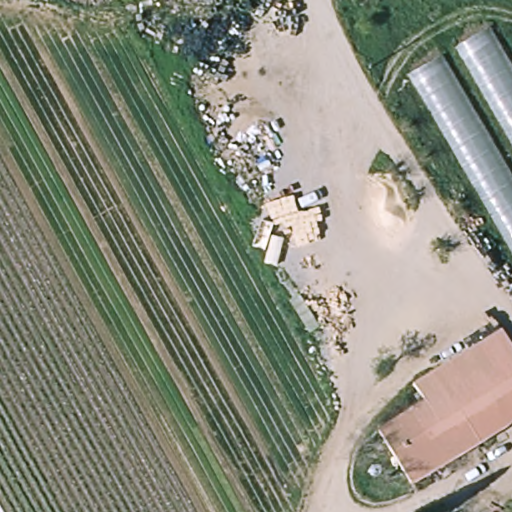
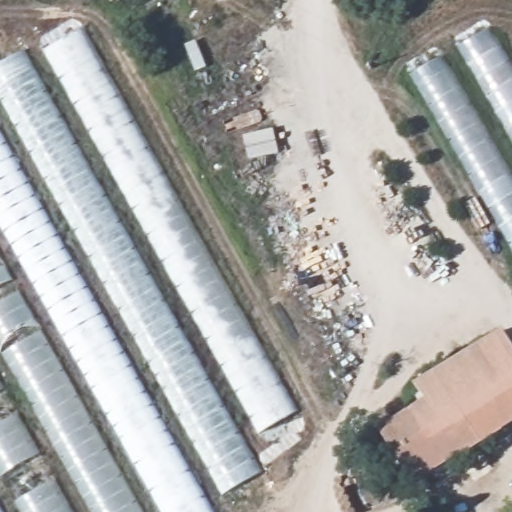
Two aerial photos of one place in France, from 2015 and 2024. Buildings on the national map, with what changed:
unchanged [(110,4),(108,0),(117,0),(110,4)]
unchanged [(407,76),(498,26),(512,47),(512,262),(407,76)]
new [(29,56),(86,27),(297,413),(243,441),(264,474),(201,504),(206,512),(0,512),(0,62),(25,50),(29,56)]
unchanged [(512,354),(512,429),(409,490),(375,435),(400,422),(396,415),(403,411),(406,417),(424,408),(412,385),(501,336),(512,354)]

